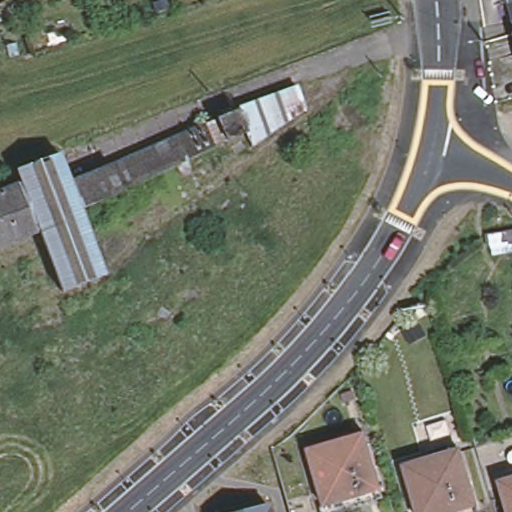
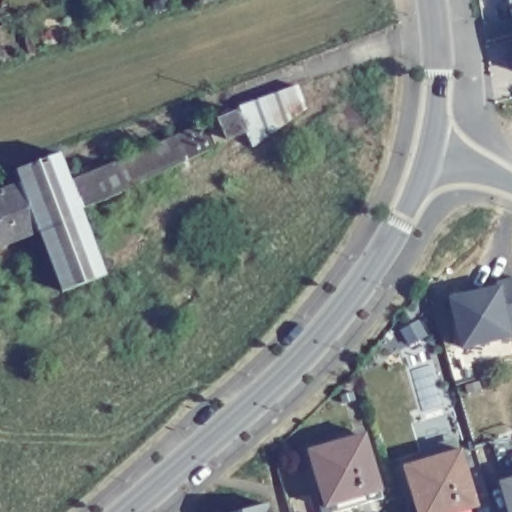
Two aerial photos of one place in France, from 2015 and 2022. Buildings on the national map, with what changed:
unchanged [(505,32),(496,0),(512,0),(512,30),(507,31),(505,32)]
unchanged [(512,50),(507,31),(512,30),(512,50)]
unchanged [(17,185),(12,171),(55,154),(66,182),(90,169),(198,114),(200,116),(230,104),(233,110),(237,109),(233,99),(290,79),(300,103),(254,139),(247,145),(245,143),(240,130),(212,141),(126,186),(129,192),(110,202),(107,195),(105,197),(76,208),(80,217),(37,235),(35,230),(22,235),(0,244),(0,192),(5,190),(17,185)]
unchanged [(80,217),(102,274),(60,291),(37,235),(80,217)]
new [(460,294),(470,291),(469,285),(487,282),(487,278),(508,272),(512,290),(512,319),(497,323),(499,329),(450,340),(440,292),(458,288),(460,294)]
unchanged [(357,429),(373,481),(320,498),(304,445),(357,429)]
unchanged [(452,444),(468,497),(419,512),(416,512),(400,460),(452,444)]
unchanged [(496,476),(512,471),(512,512),(507,512),(496,476)]
unchanged [(267,504),(270,512),(244,512),(267,504)]

